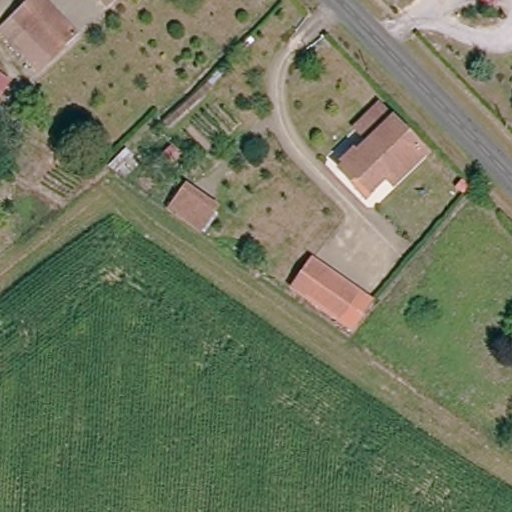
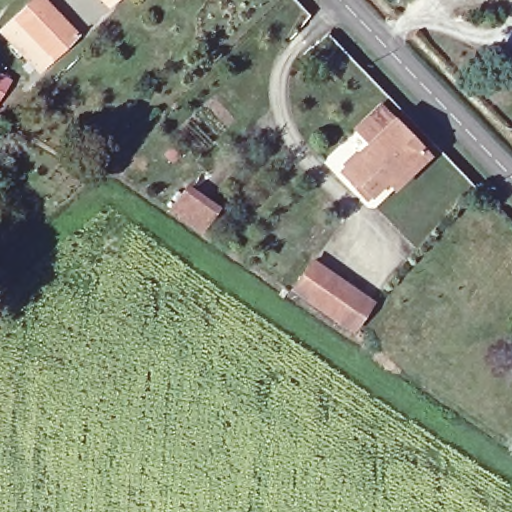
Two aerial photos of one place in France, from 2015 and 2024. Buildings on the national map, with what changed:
unchanged [(82,30),(42,69),(6,33),(38,0),(52,0),(82,30)]
unchanged [(104,0),(122,0),(112,9),(104,0)]
unchanged [(10,81),(0,95),(0,74),(10,81)]
unchanged [(372,141),(359,127),(365,121),(381,106),(423,151),(391,183),(386,178),(370,193),(344,168),(372,141)]
unchanged [(186,183),(219,206),(205,233),(167,213),(186,183)]
unchanged [(313,267),(337,284),(358,298),(340,325),(314,307),(295,294),(313,267)]

